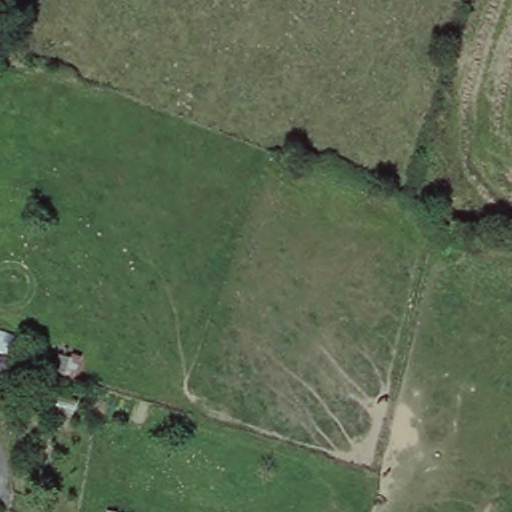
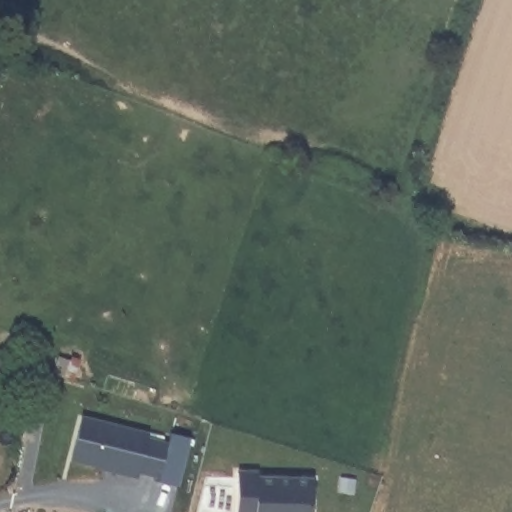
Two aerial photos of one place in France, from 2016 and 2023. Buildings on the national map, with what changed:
new [(191,437),(182,482),(73,459),(85,411),(191,437)]
new [(315,512),(241,512),(239,470),(313,468),(315,512)]

